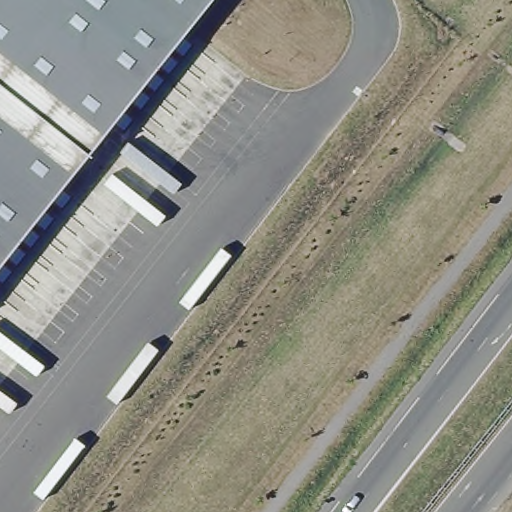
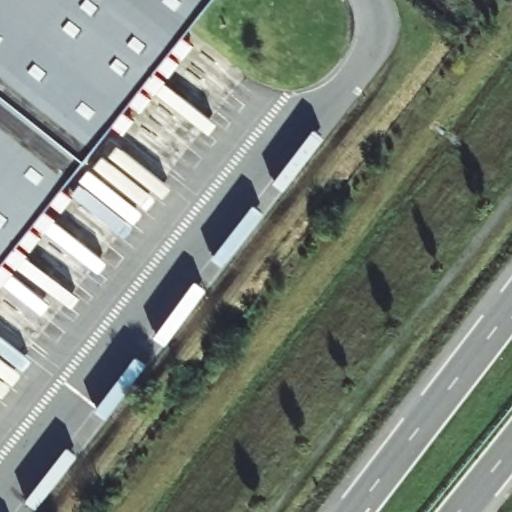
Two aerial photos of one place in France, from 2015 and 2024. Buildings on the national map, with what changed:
unchanged [(210,0),(0,264),(0,0),(210,0)]

